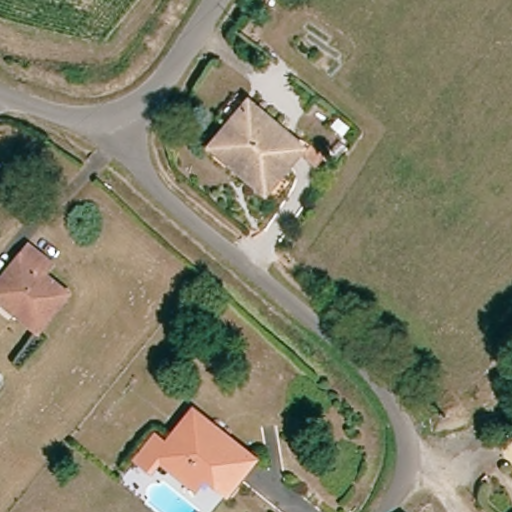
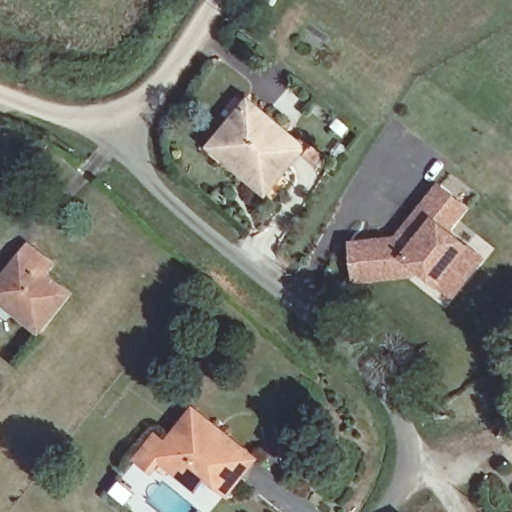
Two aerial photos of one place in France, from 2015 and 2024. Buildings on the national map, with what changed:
unchanged [(218,143),(250,104),(303,148),(265,194),(245,179),(212,151),(218,143)]
new [(432,278),(412,262),(407,269),(351,274),(347,238),(391,234),(396,229),(433,183),(459,204),(440,227),(475,255),(456,279),(446,290),(432,278)]
unchanged [(51,267),(44,277),(70,298),(39,337),(22,323),(0,305),(0,286),(31,249),(51,267)]
unchanged [(171,466),(159,456),(151,466),(138,455),(156,434),(169,444),(196,412),(256,459),(230,492),(208,476),(199,488),(187,479),(171,466)]

